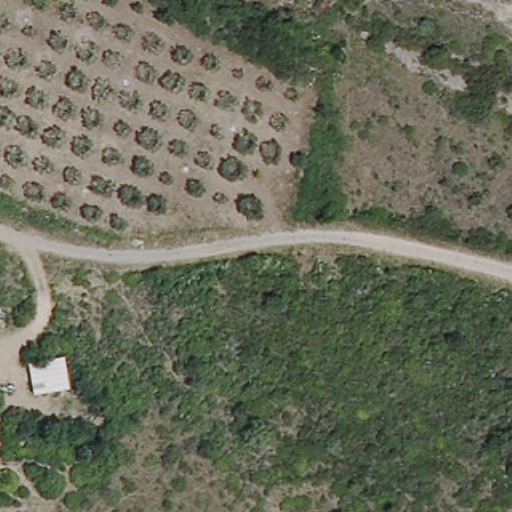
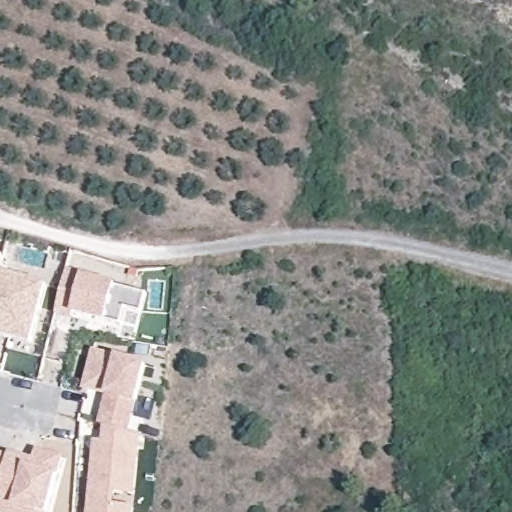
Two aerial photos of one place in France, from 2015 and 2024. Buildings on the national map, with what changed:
new [(3,256),(0,270),(0,256),(3,256)]
new [(67,271),(84,275),(83,277),(147,294),(142,312),(126,309),(121,325),(74,313),(73,317),(56,313),(67,271)]
new [(47,286),(32,344),(0,336),(0,274),(47,286)]
new [(94,352),(145,365),(128,433),(106,427),(101,426),(108,395),(85,389),(94,352)]
demolished [(67,362),(72,396),(37,400),(30,369),(67,362)]
new [(104,443),(106,427),(128,433),(140,435),(135,489),(121,488),(119,508),(133,509),(132,512),(89,512),(90,505),(91,491),(96,442),(104,443)]
new [(8,457),(9,455),(34,461),(36,451),(62,458),(48,512),(0,512),(0,489),(8,457)]
new [(8,457),(0,489),(0,455),(8,457)]

